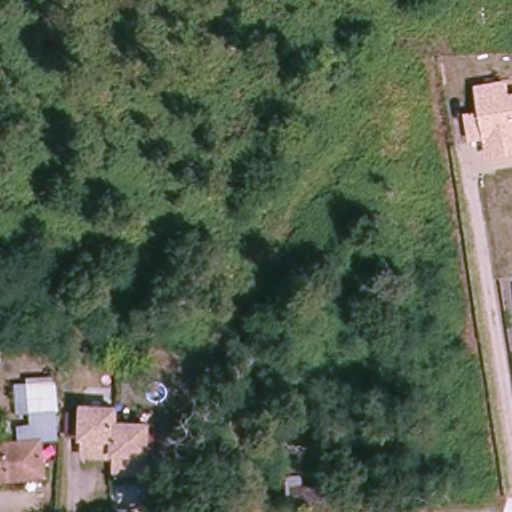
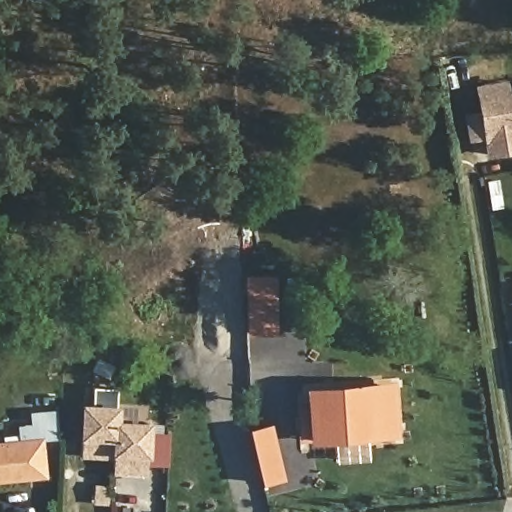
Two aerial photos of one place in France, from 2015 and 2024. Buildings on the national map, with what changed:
unchanged [(487,157),(485,140),(468,142),(464,114),(479,112),(475,87),(508,81),(510,94),(512,94),(512,153),(487,157)]
new [(247,275),(275,274),(277,335),(250,336),(247,275)]
unchanged [(0,444),(20,442),(18,428),(30,425),(30,414),(27,378),(55,376),(56,411),(64,410),(65,425),(66,438),(59,439),(54,440),(40,441),(41,457),(42,476),(29,477),(0,480),(0,444)]
new [(309,443),(306,387),(396,381),(400,438),(309,443)]
unchanged [(145,451),(139,472),(110,473),(109,457),(79,455),(81,442),(80,437),(75,437),(76,401),(116,401),(115,419),(147,420),(145,451)]
new [(261,484),(249,429),(272,423),(285,480),(261,484)]
demolished [(320,491),(335,490),(336,506),(293,508),(293,472),(318,470),(320,491)]

